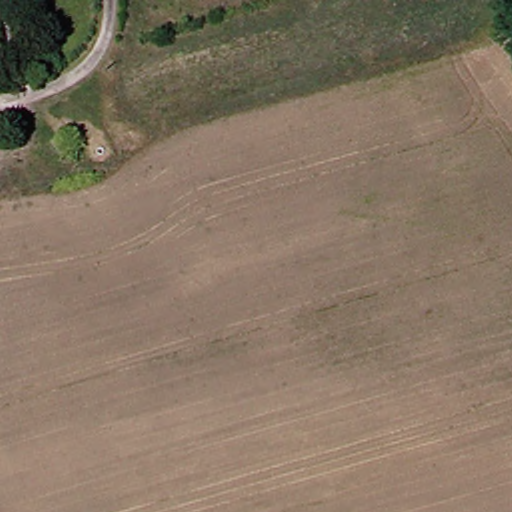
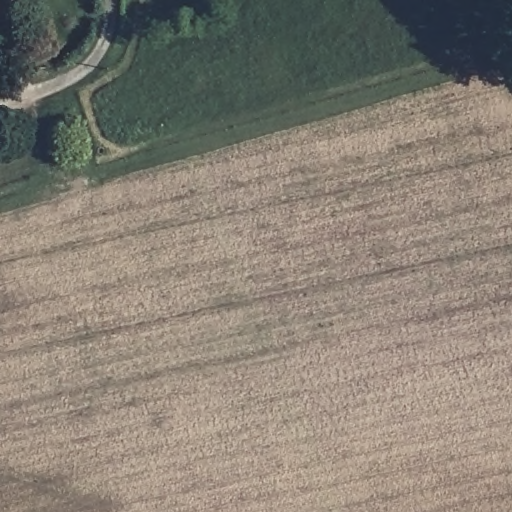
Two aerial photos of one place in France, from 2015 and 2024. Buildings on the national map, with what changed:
unchanged [(0,0),(3,0),(5,10),(0,11),(0,0)]

